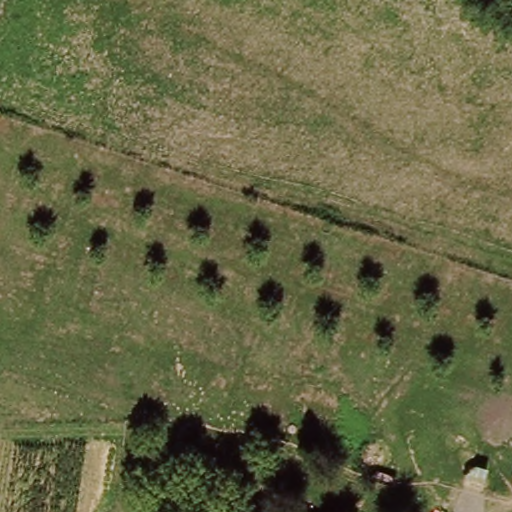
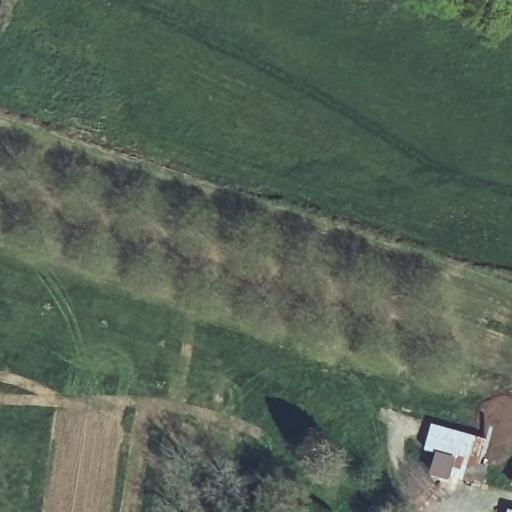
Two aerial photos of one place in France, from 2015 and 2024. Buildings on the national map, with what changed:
new [(472,461),(490,466),(486,483),(433,471),(437,454),(426,451),(433,424),(478,437),(472,461)]
new [(511,510),(512,510),(512,512),(510,512),(511,510)]

